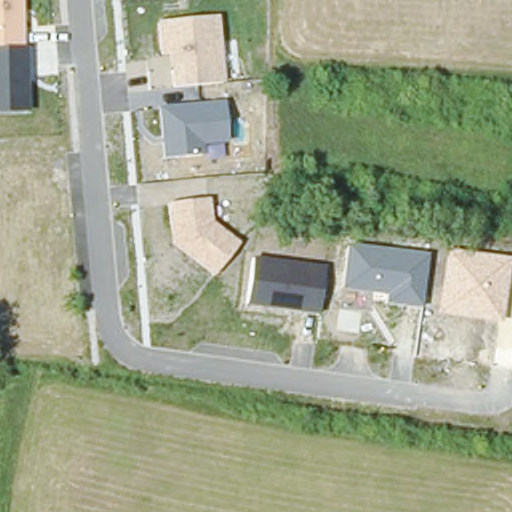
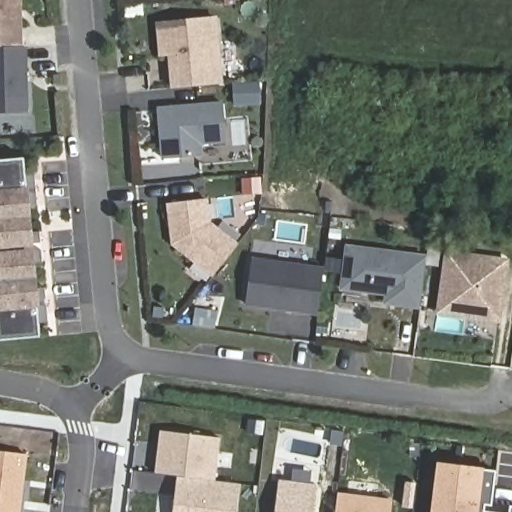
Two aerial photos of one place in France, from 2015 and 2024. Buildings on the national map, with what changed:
unchanged [(28,45),(30,112),(0,113),(0,0),(22,0),(23,45),(28,45)]
unchanged [(218,15),(223,83),(172,88),(169,55),(158,55),(156,21),(218,15)]
unchanged [(225,100),(228,143),(203,144),(203,155),(162,158),(157,106),(225,100)]
new [(27,188),(29,188),(41,307),(38,307),(41,337),(0,341),(0,160),(24,159),(27,188)]
unchanged [(211,221),(239,244),(212,279),(169,244),(166,204),(209,199),(211,221)]
unchanged [(383,304),(385,294),(341,288),(347,243),(427,253),(420,309),(383,304)]
unchanged [(437,314),(448,249),(511,258),(501,323),(437,314)]
unchanged [(325,265),(319,314),(245,305),(253,257),(325,265)]
new [(176,476),(155,474),(160,431),(221,437),(216,480),(241,484),(238,512),(173,512),(176,476)]
new [(28,454),(20,512),(0,512),(0,451),(28,454)]
new [(441,498),(433,497),(437,463),(483,468),(482,481),(494,482),(491,503),(512,506),(512,512),(438,512),(441,498)]
new [(279,479),(319,484),(316,512),(275,512),(279,479)]
new [(338,492),(392,499),(391,512),(335,512),(338,492)]

